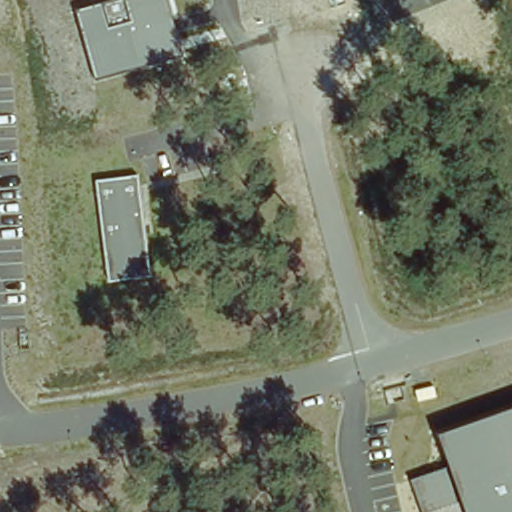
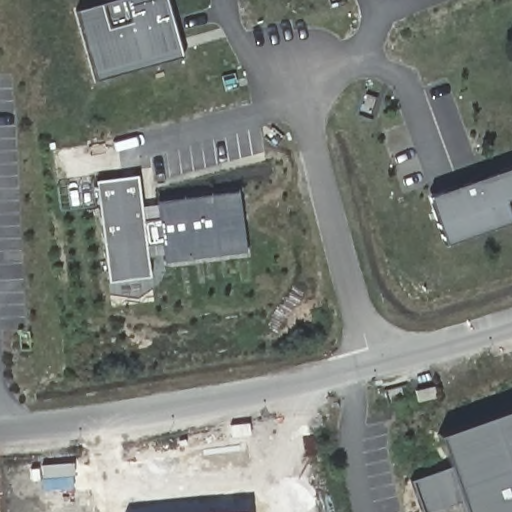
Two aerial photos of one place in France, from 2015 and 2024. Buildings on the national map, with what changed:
unchanged [(97,80),(80,9),(114,0),(167,0),(182,59),(97,80)]
new [(427,194),(512,166),(512,221),(443,243),(427,194)]
new [(137,173),(142,203),(243,193),(248,250),(151,261),(153,274),(111,280),(96,179),(137,173)]
demolished [(138,176),(152,277),(108,282),(97,179),(138,176)]
unchanged [(416,480),(451,468),(438,430),(512,406),(512,512),(426,512),(416,480)]
new [(245,509),(246,512),(219,512),(245,509)]

